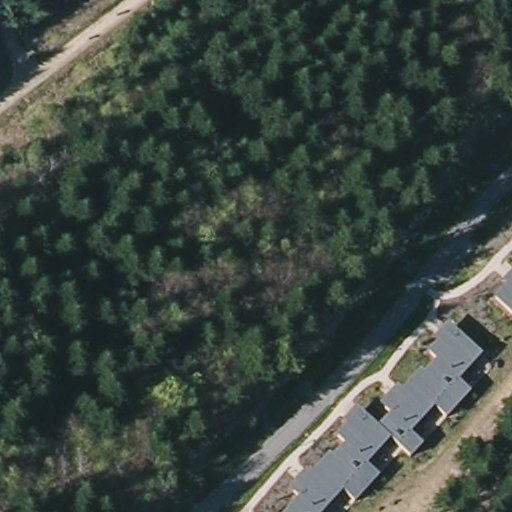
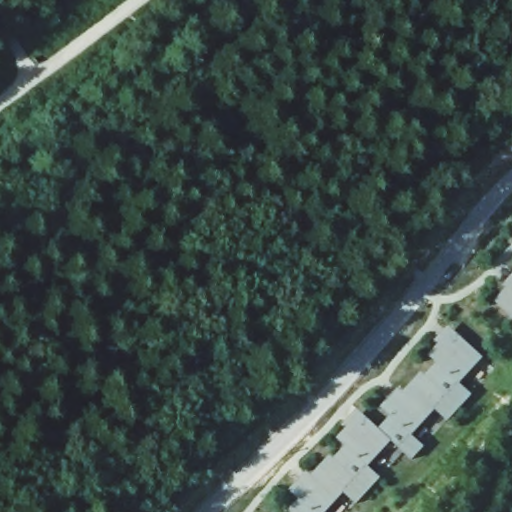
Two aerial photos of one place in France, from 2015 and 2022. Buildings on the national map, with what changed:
unchanged [(494,299),(506,286),(503,283),(512,272),(512,315),(494,299)]
unchanged [(460,382),(471,392),(447,420),(434,410),(413,434),(424,445),(412,459),(392,441),(368,466),(380,476),(356,503),(343,493),(326,512),(284,512),(297,498),(289,489),(307,469),(311,473),(329,453),(334,457),(346,446),(337,437),(346,427),(342,422),(356,407),(379,426),(390,415),(379,406),(399,386),(404,390),(422,370),(426,373),(437,362),(428,353),(437,344),(432,340),(449,324),(484,356),(460,382)]

